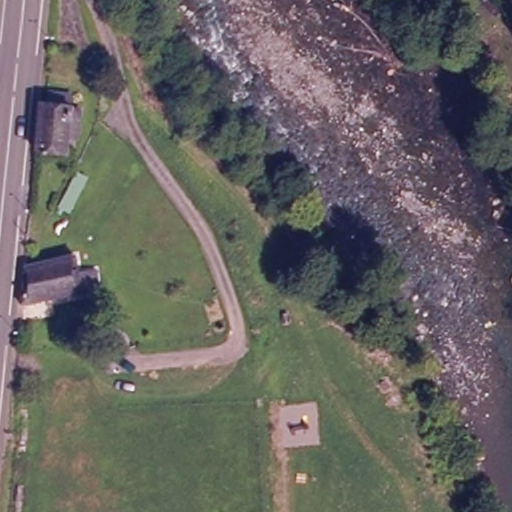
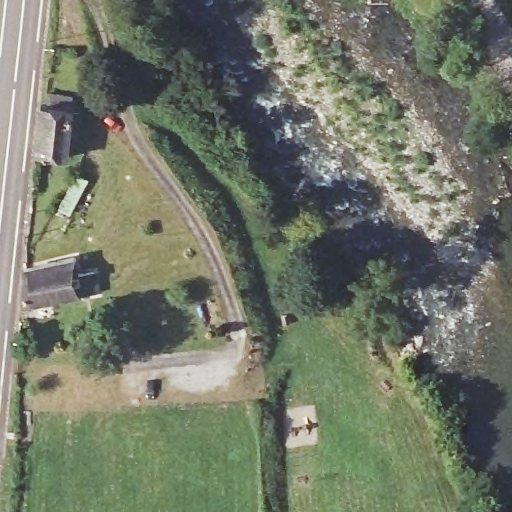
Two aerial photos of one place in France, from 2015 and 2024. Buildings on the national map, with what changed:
unchanged [(37,104),(76,108),(74,138),(67,138),(64,155),(33,152),(37,104)]
unchanged [(34,267),(78,253),(87,286),(24,304),(26,269),(34,267)]

